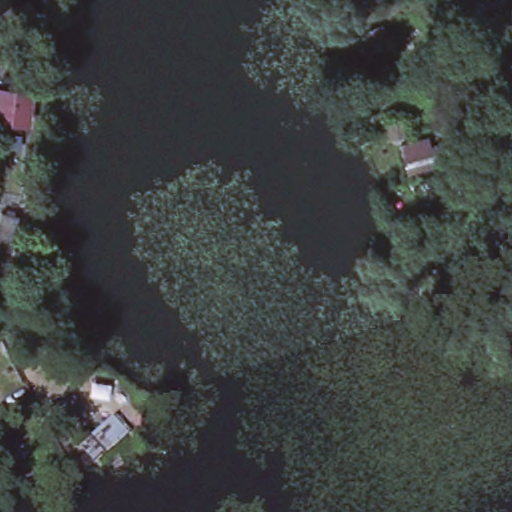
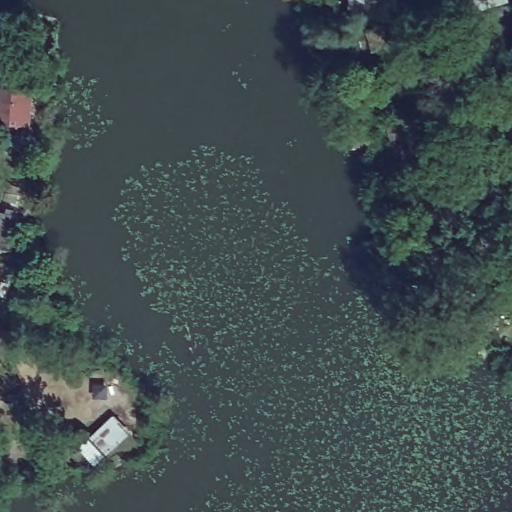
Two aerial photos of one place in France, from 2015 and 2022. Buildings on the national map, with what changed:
unchanged [(479,8),(477,0),(508,0),(479,8)]
unchanged [(365,33),(380,29),(386,51),(371,56),(365,33)]
unchanged [(6,84),(5,89),(26,91),(26,87),(32,87),(29,127),(0,124),(0,83),(6,84)]
unchanged [(385,129),(402,126),(405,140),(390,143),(385,129)]
unchanged [(400,151),(436,140),(444,167),(409,178),(400,151)]
unchanged [(452,182),(483,174),(491,199),(460,208),(452,182)]
unchanged [(2,210),(17,214),(9,246),(1,244),(0,249),(0,217),(2,210)]
unchanged [(508,231),(512,238),(512,266),(497,275),(481,246),(508,231)]
unchanged [(512,282),(512,308),(499,295),(512,282)]
unchanged [(133,394),(120,406),(110,396),(121,385),(133,394)]
unchanged [(113,415),(127,432),(95,460),(80,444),(113,415)]

